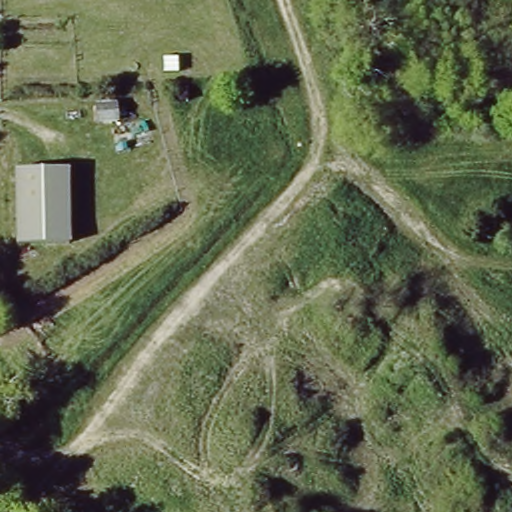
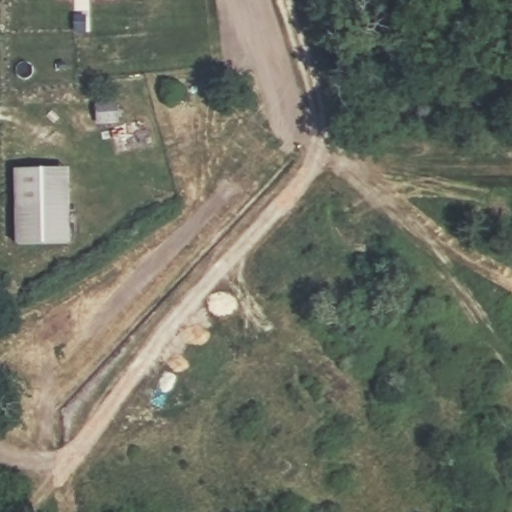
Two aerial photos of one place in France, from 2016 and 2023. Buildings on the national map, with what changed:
unchanged [(70,167),(72,244),(17,246),(15,169),(70,167)]

